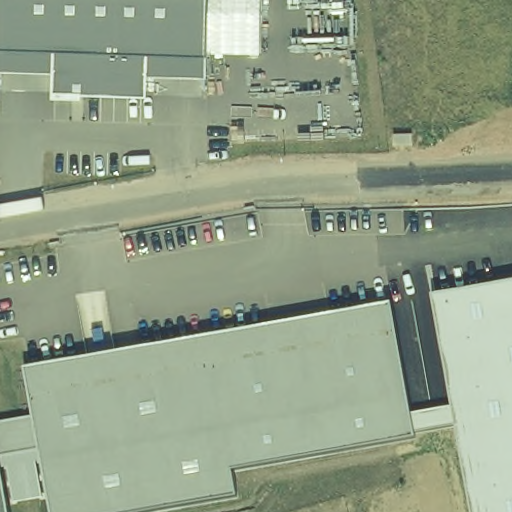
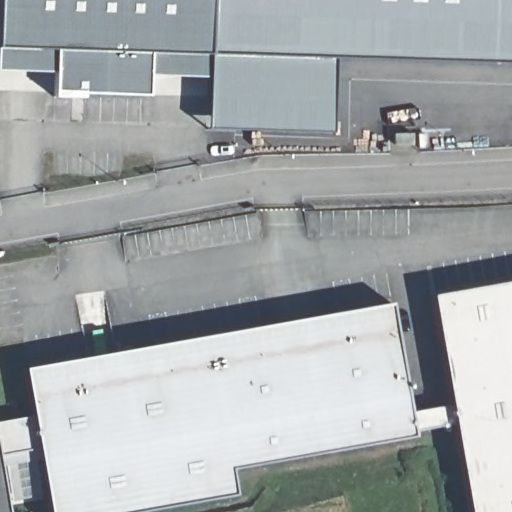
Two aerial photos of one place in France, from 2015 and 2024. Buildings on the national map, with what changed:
unchanged [(53,93),(55,50),(0,48),(0,0),(210,0),(208,55),(150,54),(147,96),(83,94),(82,98),(53,97),(53,93)]
new [(332,62),(330,130),(206,127),(208,77),(208,55),(210,0),(512,0),(512,69),(332,62)]
unchanged [(0,48),(55,50),(54,72),(0,70),(0,48)]
unchanged [(208,77),(148,75),(150,54),(208,55),(208,77)]
unchanged [(452,403),(432,295),(512,281),(512,512),(472,512),(455,421),(415,428),(411,411),(452,403)]
unchanged [(25,370),(392,303),(415,435),(231,467),(236,492),(129,512),(51,512),(41,445),(0,454),(0,423),(35,416),(25,370)]
unchanged [(0,512),(0,465),(8,512),(0,512)]

